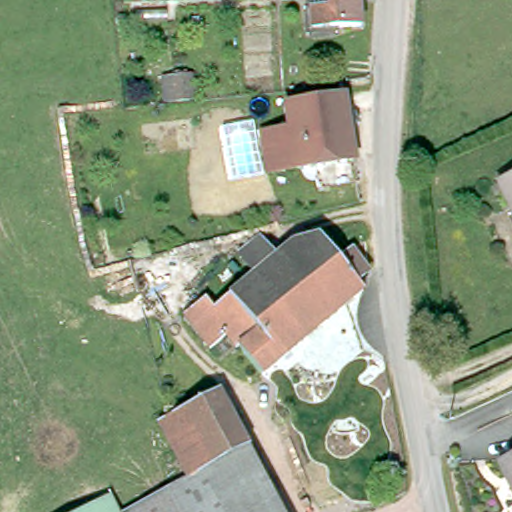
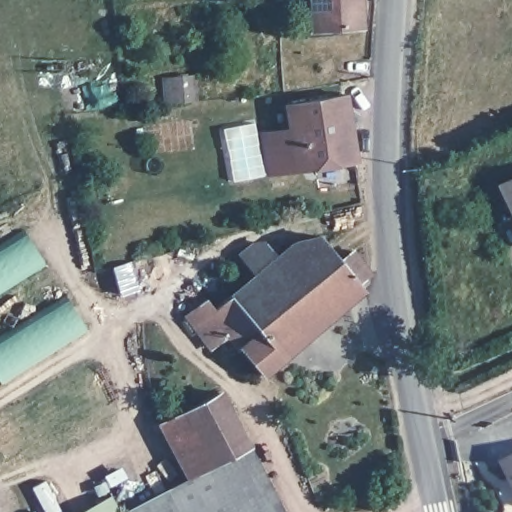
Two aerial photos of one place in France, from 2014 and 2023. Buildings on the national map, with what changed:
unchanged [(300,0),(348,0),(348,22),(300,24),(300,0)]
unchanged [(344,87),(355,155),(268,170),(266,160),(260,129),(257,130),(255,117),(269,115),(271,127),(290,124),(285,99),(344,87)]
unchanged [(495,175),(512,167),(512,209),(495,175)]
new [(44,268),(0,296),(0,246),(21,232),(44,268)]
unchanged [(292,239),(316,235),(362,289),(260,376),(225,335),(211,347),(185,312),(202,298),(212,309),(252,275),(239,259),(239,251),(242,244),(245,241),(251,237),(257,237),(264,241),(266,244),(276,254),(292,239)]
new [(87,333),(9,382),(0,368),(0,337),(64,297),(87,333)]
unchanged [(181,473),(152,417),(210,387),(240,442),(181,473)]
unchanged [(240,442),(278,512),(176,512),(161,484),(181,473),(240,442)]
unchanged [(494,460),(512,451),(512,499),(494,460)]
unchanged [(161,484),(176,512),(123,512),(120,506),(161,484)]
unchanged [(120,506),(123,512),(64,512),(110,488),(120,506)]

